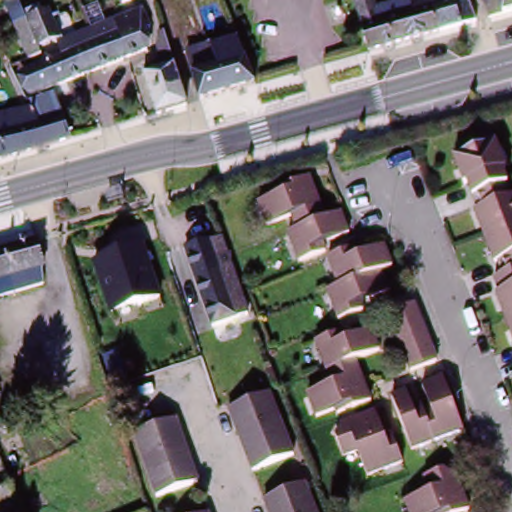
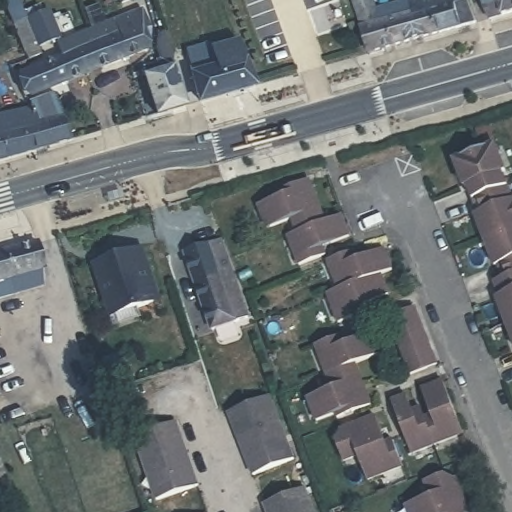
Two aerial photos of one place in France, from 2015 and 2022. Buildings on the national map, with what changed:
unchanged [(122,0),(129,0),(123,2),(122,0)]
unchanged [(412,0),(431,0),(441,30),(375,48),(356,7),(354,0),(377,0),(380,9),(412,0)]
unchanged [(476,0),(482,19),(441,30),(431,0),(470,0),(471,2),(476,0)]
unchanged [(483,0),(512,0),(512,12),(487,18),(483,0)]
unchanged [(22,49),(13,23),(20,20),(26,16),(44,3),(57,35),(36,44),(22,49)]
unchanged [(25,100),(16,74),(76,51),(72,40),(140,14),(146,31),(134,37),(139,55),(25,100)]
unchanged [(183,108),(156,116),(143,77),(153,74),(150,66),(160,61),(153,37),(162,34),(183,108)]
unchanged [(255,87),(201,103),(192,76),(205,72),(199,53),(238,40),(255,87)]
unchanged [(23,106),(56,97),(63,118),(71,140),(21,154),(0,161),(0,113),(23,106)]
unchanged [(469,185),(463,187),(461,177),(465,176),(462,168),(458,170),(455,161),(496,145),(506,171),(502,173),(507,186),(474,198),(469,185)]
unchanged [(290,218),(266,228),(257,203),(276,197),(275,191),(307,180),(323,220),(295,231),(290,218)]
unchanged [(483,225),(481,220),(476,220),(474,214),(478,211),(474,198),(507,186),(512,200),(512,230),(485,241),(480,228),(483,225)]
unchanged [(323,220),(337,215),(345,237),(319,245),(323,255),(295,265),(285,235),(295,231),(323,220)]
unchanged [(495,265),(490,257),(494,255),(492,250),(488,251),(485,241),(512,230),(512,274),(502,277),(497,264),(495,265)]
unchanged [(257,315),(220,326),(197,254),(232,242),(257,315)]
unchanged [(44,268),(41,269),(41,272),(40,288),(13,296),(0,291),(0,252),(35,243),(44,268)]
unchanged [(325,260),(349,251),(353,260),(380,249),(388,269),(375,275),(336,288),(325,260)]
unchanged [(150,250),(158,282),(143,286),(145,293),(131,297),(136,313),(112,319),(106,295),(103,296),(95,263),(150,250)]
unchanged [(505,310),(501,301),(497,302),(493,295),(499,293),(495,281),(502,277),(512,274),(512,323),(506,326),(501,312),(505,310)]
unchanged [(375,275),(383,295),(357,306),(360,312),(335,321),(323,293),(336,288),(375,275)]
unchanged [(403,356),(398,343),(392,329),(386,313),(412,305),(417,319),(422,331),(428,347),(434,363),(409,371),(403,356)]
unchanged [(316,342),(341,333),(345,342),(372,332),(380,354),(354,364),(327,374),(316,342)]
unchanged [(354,364),(371,406),(339,419),(336,414),(316,421),(308,398),(332,390),(327,374),(354,364)]
unchanged [(427,420),(434,417),(424,390),(444,383),(465,436),(435,447),(427,420)]
unchanged [(413,455),(393,402),(407,396),(413,411),(422,408),(427,420),(435,447),(413,455)]
unchanged [(276,397),(277,400),(300,461),(258,476),(233,410),(276,397)]
unchanged [(183,417),(203,482),(162,494),(142,429),(183,417)]
unchanged [(369,481),(359,456),(343,462),(337,442),(343,429),(376,418),(386,443),(392,440),(402,467),(369,481)]
unchanged [(0,482),(0,468),(5,479),(0,482)]
unchanged [(407,507),(431,497),(426,482),(449,474),(458,481),(471,512),(409,512),(407,507)]
unchanged [(310,487),(319,512),(273,512),(270,502),(310,487)]
unchanged [(7,488),(17,512),(0,512),(0,491),(7,488)]

